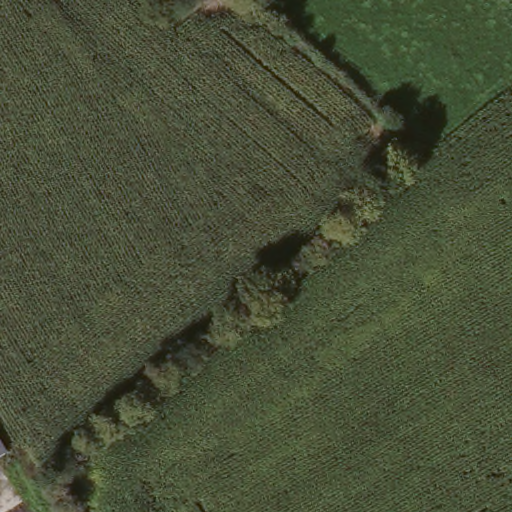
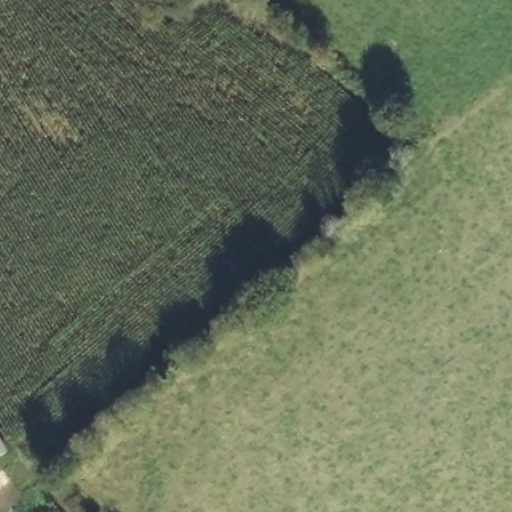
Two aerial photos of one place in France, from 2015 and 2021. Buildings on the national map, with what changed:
unchanged [(9,456),(0,462),(0,443),(9,456)]

